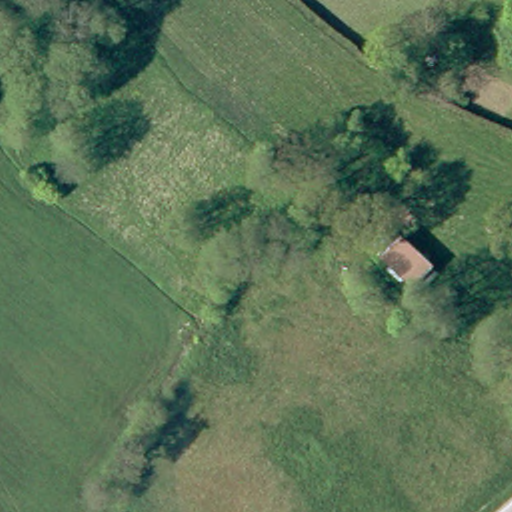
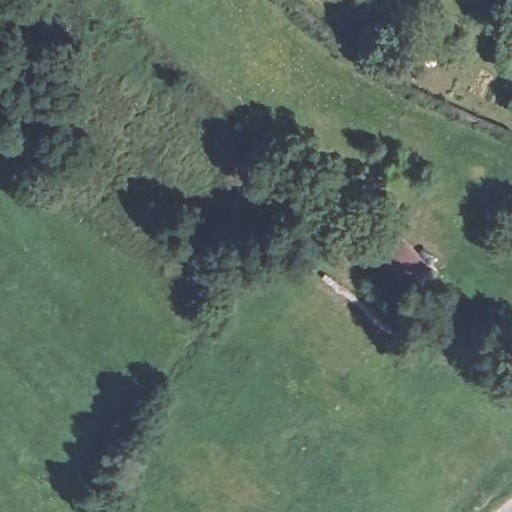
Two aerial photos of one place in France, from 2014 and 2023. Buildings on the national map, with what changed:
unchanged [(401,235),(430,264),(410,282),(384,254),(401,235)]

